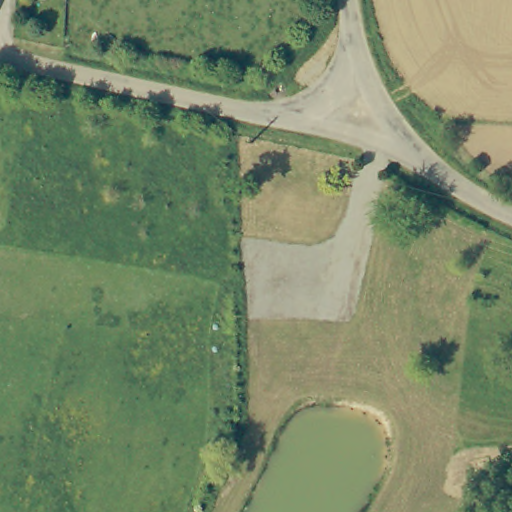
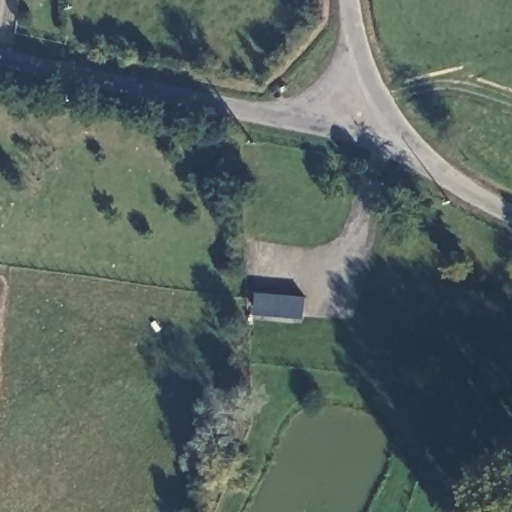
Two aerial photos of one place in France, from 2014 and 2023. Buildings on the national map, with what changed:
new [(255,292),(304,297),(303,317),(252,314),(255,292)]

